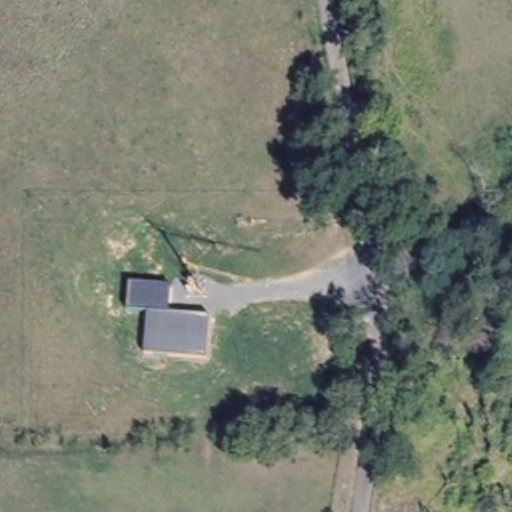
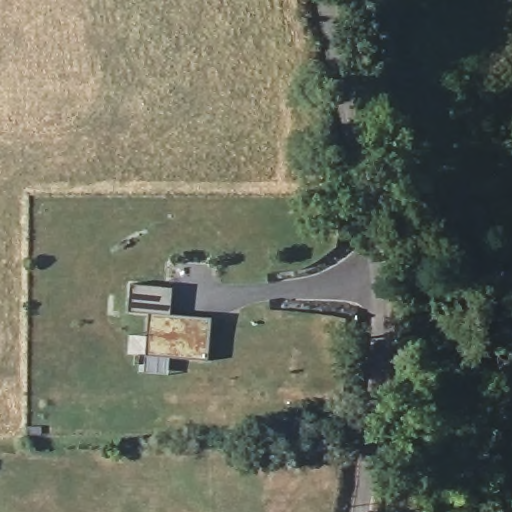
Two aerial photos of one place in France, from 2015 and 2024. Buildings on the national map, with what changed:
unchanged [(172,290),(170,315),(210,319),(207,363),(145,356),(149,315),(129,313),(130,285),(172,290)]

